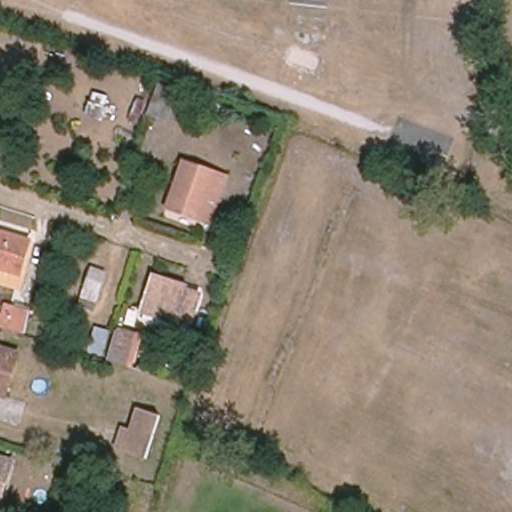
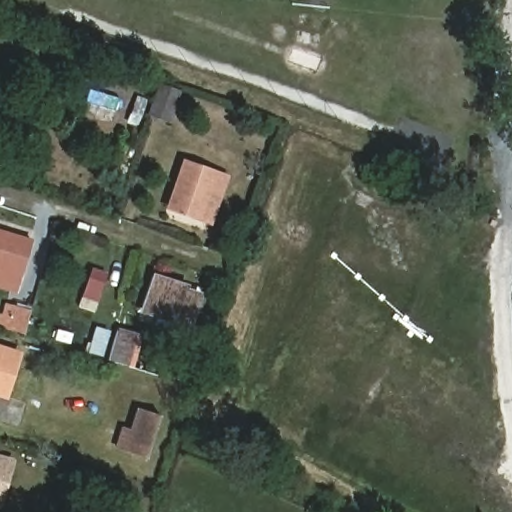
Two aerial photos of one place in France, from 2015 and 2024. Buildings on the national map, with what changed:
unchanged [(161,82),(181,90),(169,123),(149,116),(161,82)]
unchanged [(212,222),(202,219),(172,209),(187,166),(225,179),(220,193),(222,194),(212,222)]
unchanged [(31,240),(22,274),(0,268),(0,231),(31,240)]
unchanged [(81,305),(84,296),(93,268),(106,272),(97,301),(94,309),(81,305)]
unchanged [(146,271),(176,280),(174,287),(189,292),(181,318),(176,334),(145,325),(150,308),(136,304),(146,271)]
unchanged [(6,302),(31,309),(25,332),(0,324),(0,322),(6,302)]
unchanged [(98,327),(110,331),(102,355),(90,351),(98,327)]
unchanged [(120,334),(140,340),(132,368),(111,361),(120,334)]
unchanged [(0,394),(0,345),(20,352),(6,396),(0,394)]
unchanged [(125,425),(136,428),(142,407),(162,414),(149,457),(129,451),(119,448),(125,425)]
unchanged [(12,458),(0,500),(0,454),(12,458)]

